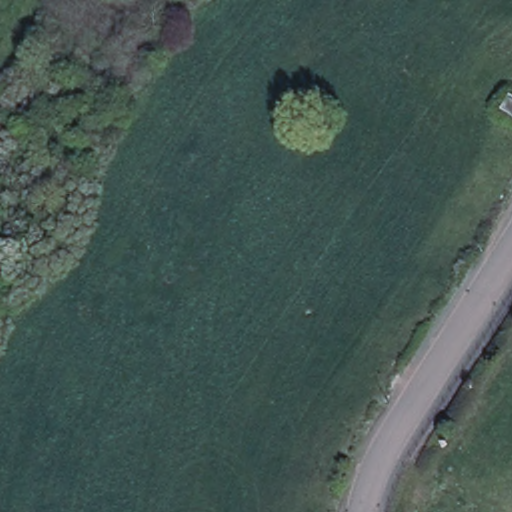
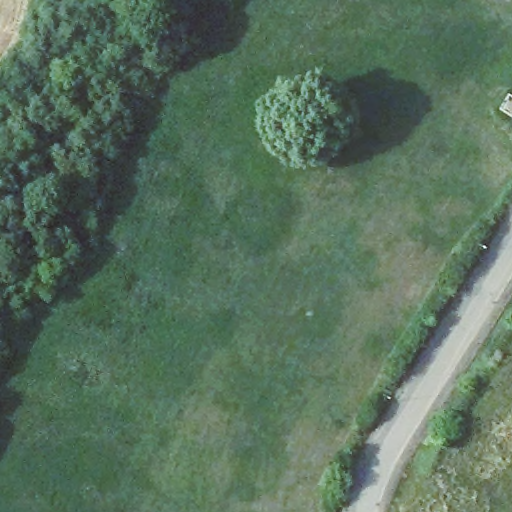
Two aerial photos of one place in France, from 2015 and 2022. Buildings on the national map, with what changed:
unchanged [(512,98),(512,118),(500,110),(509,96),(512,98)]

